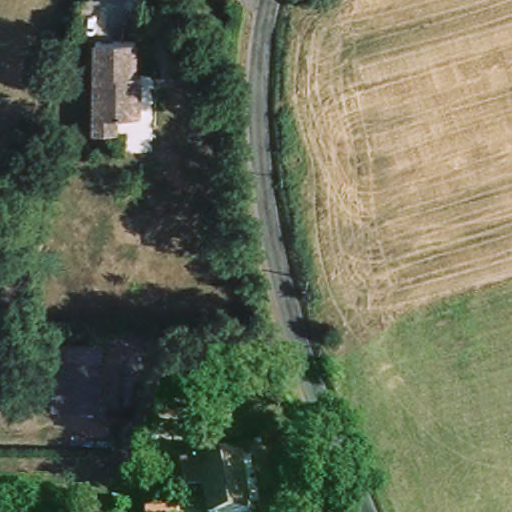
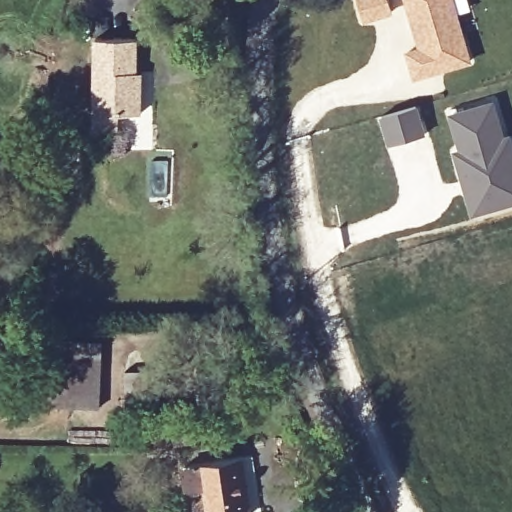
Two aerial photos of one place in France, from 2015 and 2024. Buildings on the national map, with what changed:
new [(405,51),(418,46),(406,0),(454,0),(472,61),(414,79),(405,51)]
unchanged [(107,123),(108,109),(110,36),(149,37),(148,72),(152,72),(151,110),(130,110),(130,125),(107,123)]
new [(505,134),(512,132),(512,205),(468,217),(449,151),(456,147),(445,114),(495,98),(505,134)]
new [(417,105),(427,134),(387,146),(378,117),(417,105)]
unchanged [(93,336),(93,359),(109,360),(107,407),(63,403),(66,333),(93,336)]
unchanged [(35,337),(34,353),(22,352),(24,335),(35,337)]
unchanged [(265,354),(275,353),(276,366),(266,367),(265,354)]
unchanged [(250,457),(254,508),(223,512),(220,457),(250,457)]

